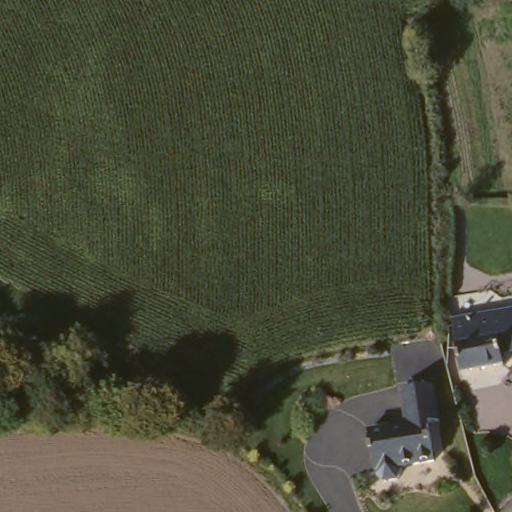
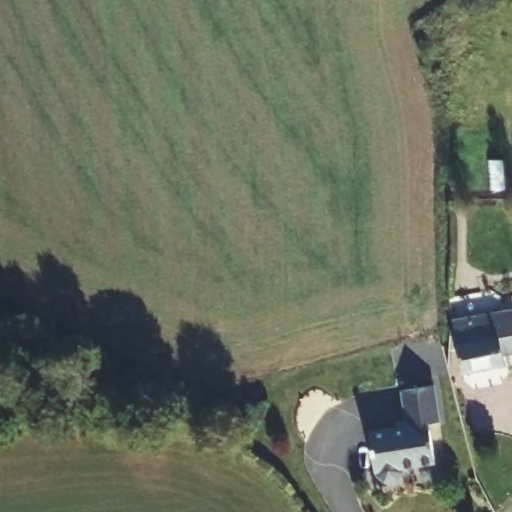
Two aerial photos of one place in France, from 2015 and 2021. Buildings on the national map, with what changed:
unchanged [(510,368),(463,371),(453,317),(512,311),(512,334),(504,335),(510,368)]
unchanged [(431,376),(441,411),(430,414),(441,451),(408,460),(409,465),(406,473),(393,476),(386,472),(384,467),(383,467),(372,429),(409,419),(399,385),(431,376)]

